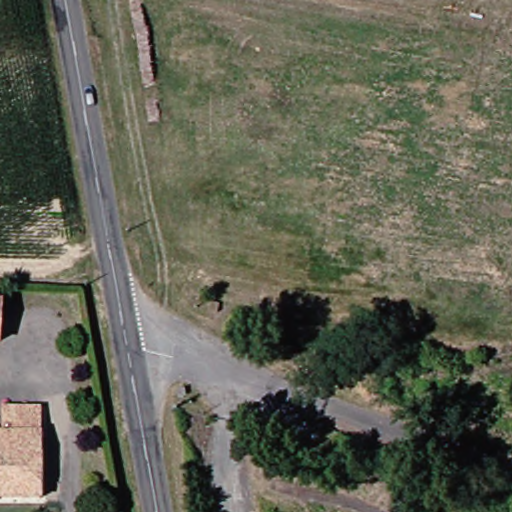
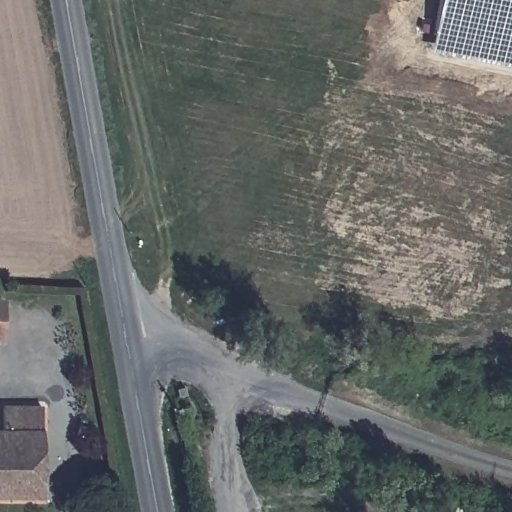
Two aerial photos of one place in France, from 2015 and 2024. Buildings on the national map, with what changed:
new [(431,52),(441,0),(512,0),(512,67),(431,52)]
unchanged [(0,299),(4,299),(2,338),(0,338),(0,299)]
unchanged [(19,496),(0,496),(0,429),(5,430),(5,405),(43,406),(43,450),(19,450),(19,496)]
unchanged [(43,496),(19,496),(19,450),(43,450),(43,496)]

